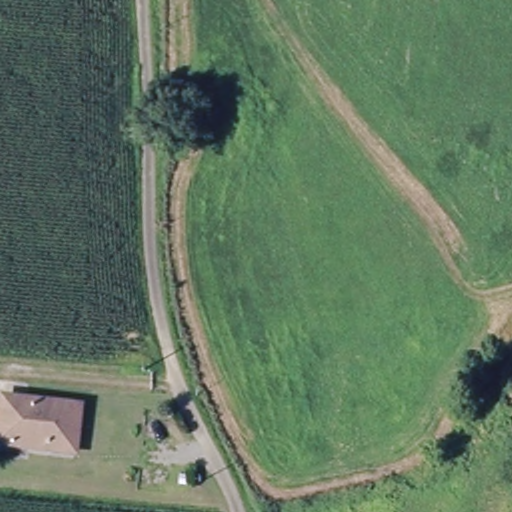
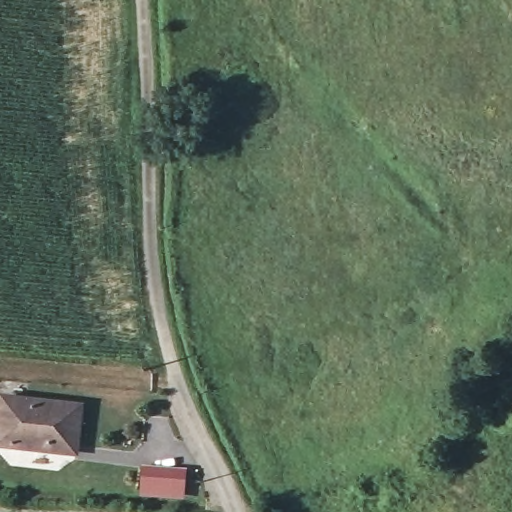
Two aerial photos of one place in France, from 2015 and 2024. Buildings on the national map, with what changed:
unchanged [(82,452),(2,450),(4,405),(84,410),(82,452)]
new [(188,470),(186,495),(142,491),(145,466),(188,470)]

